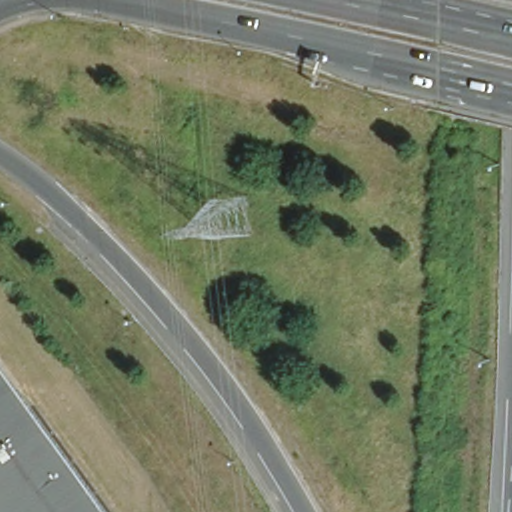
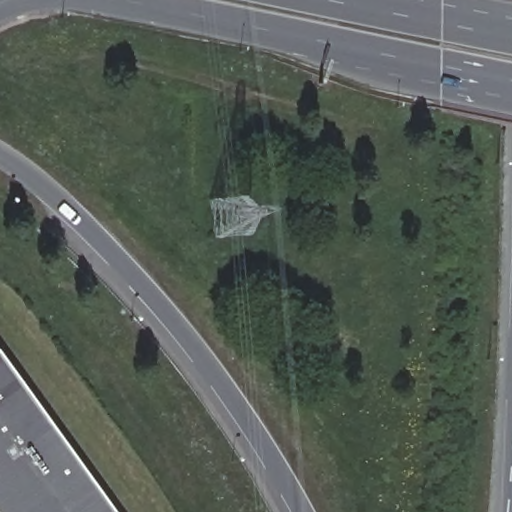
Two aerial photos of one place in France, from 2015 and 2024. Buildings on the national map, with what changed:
unchanged [(0,363),(109,512),(0,512),(0,363)]

